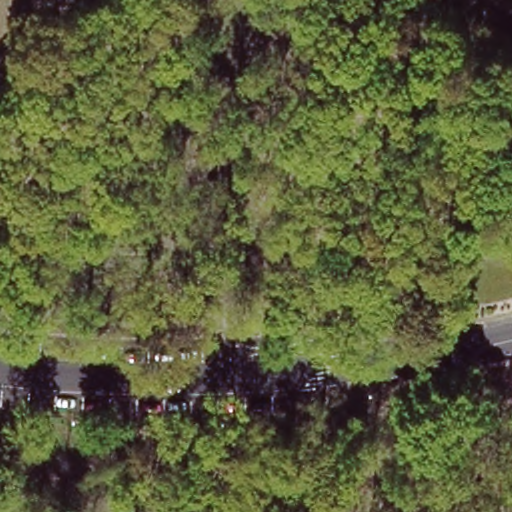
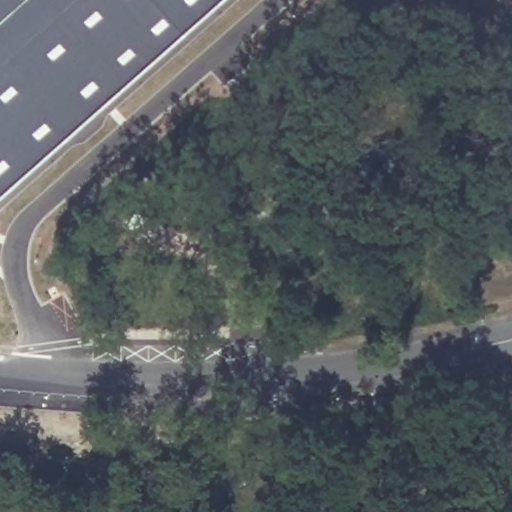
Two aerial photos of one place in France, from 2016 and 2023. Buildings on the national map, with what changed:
new [(41,152),(0,188),(0,0),(213,0),(41,152)]

